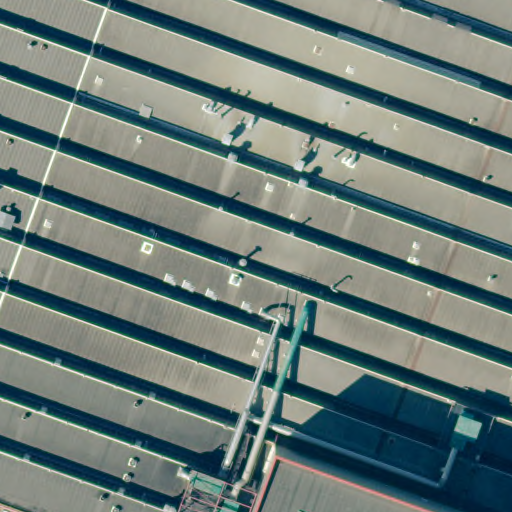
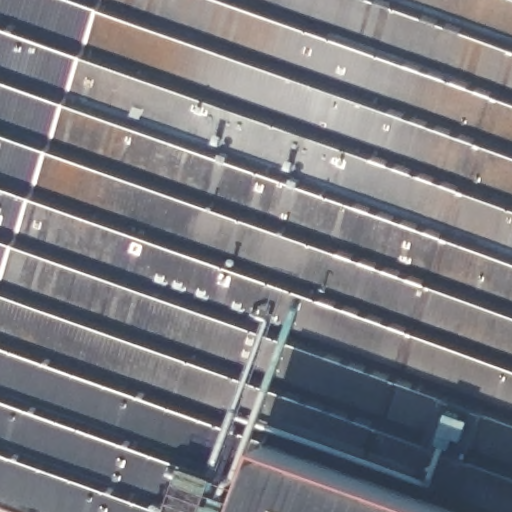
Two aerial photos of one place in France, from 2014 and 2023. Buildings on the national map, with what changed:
unchanged [(272,433),(242,512),(48,512),(0,494),(0,0),(512,0),(512,512),(489,512),(272,433)]
unchanged [(272,433),(489,512),(242,512),(272,433)]

